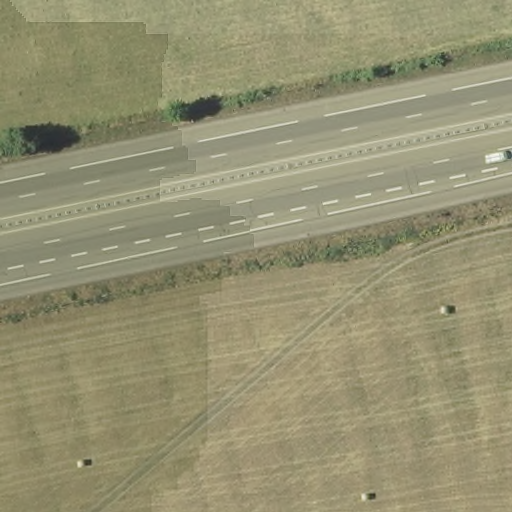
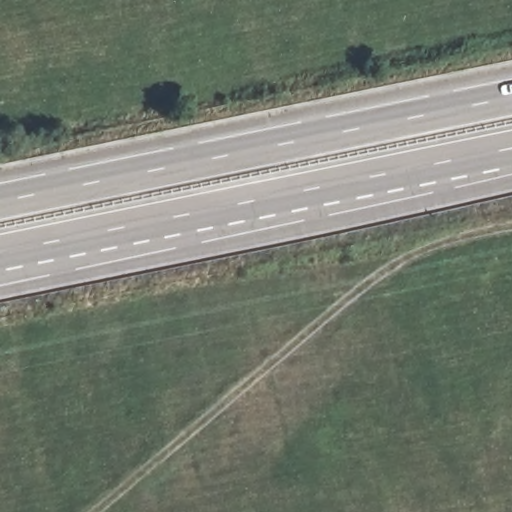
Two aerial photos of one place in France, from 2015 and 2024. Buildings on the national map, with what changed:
[]

